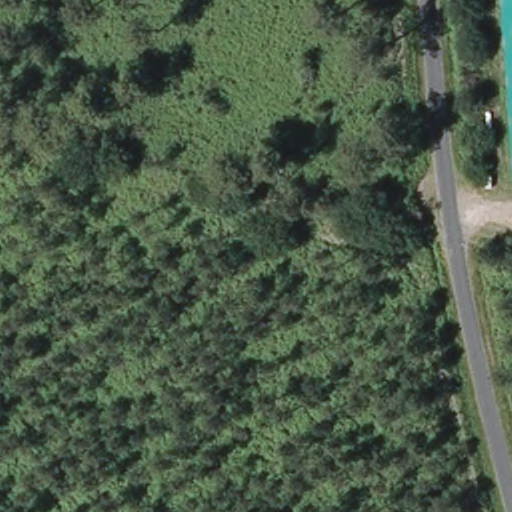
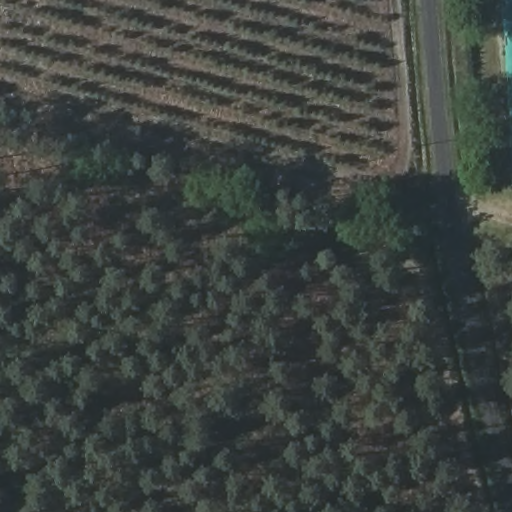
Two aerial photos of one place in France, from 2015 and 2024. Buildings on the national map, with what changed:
unchanged [(512,0),(512,111),(505,0),(512,0)]

